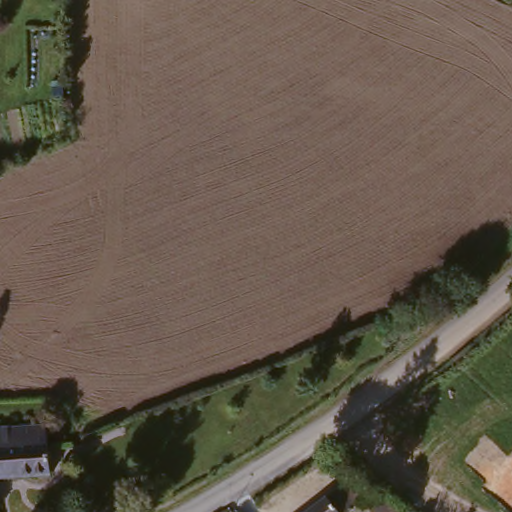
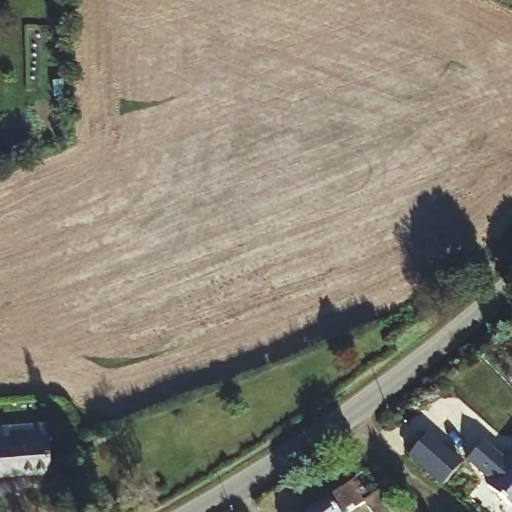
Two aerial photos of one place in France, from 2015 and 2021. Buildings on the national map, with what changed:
unchanged [(49,421),(52,470),(0,475),(0,425),(49,421)]
new [(427,432),(462,464),(439,487),(407,456),(427,432)]
unchanged [(502,463),(498,467),(503,472),(512,462),(512,512),(509,512),(486,490),(491,485),(467,463),(483,445),(502,463)]
unchanged [(364,512),(313,512),(348,487),(364,512)]
unchanged [(366,500),(379,492),(393,510),(402,508),(405,512),(373,512),(369,506),(366,500)]

